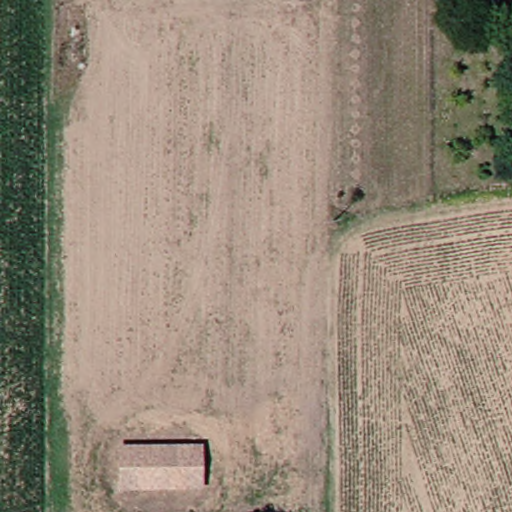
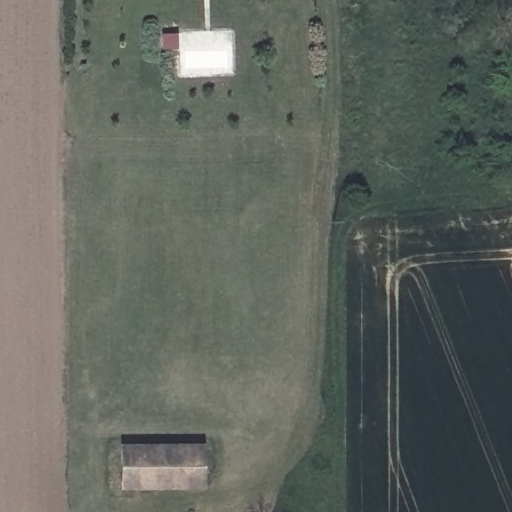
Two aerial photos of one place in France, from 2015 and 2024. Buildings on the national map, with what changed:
unchanged [(205,444),(206,490),(120,491),(119,445),(205,444)]

